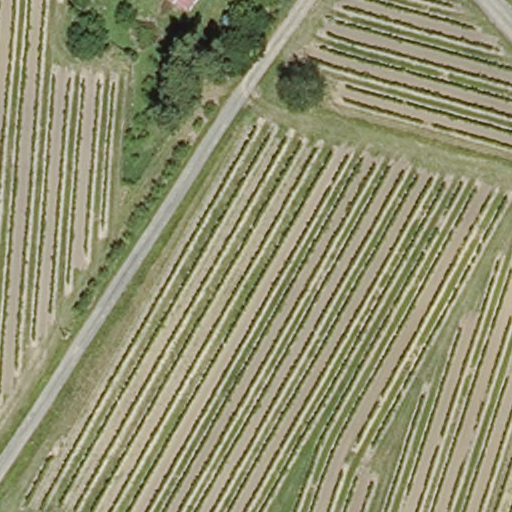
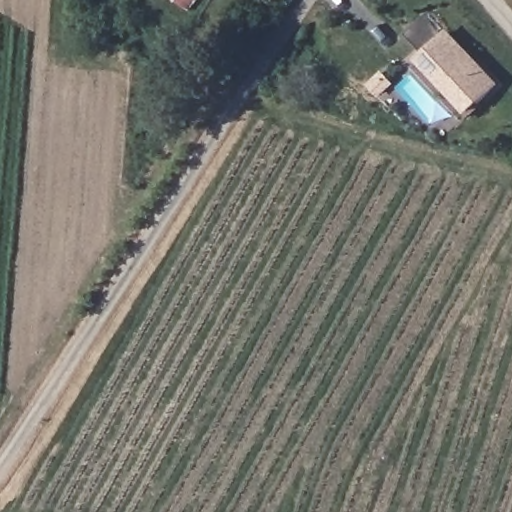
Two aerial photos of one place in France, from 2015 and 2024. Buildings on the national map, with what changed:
unchanged [(182,7),(172,14),(160,2),(162,0),(199,0),(189,14),(182,7)]
new [(424,56),(405,35),(430,12),(450,33),(451,32),(501,85),(468,115),(418,62),(424,56)]

